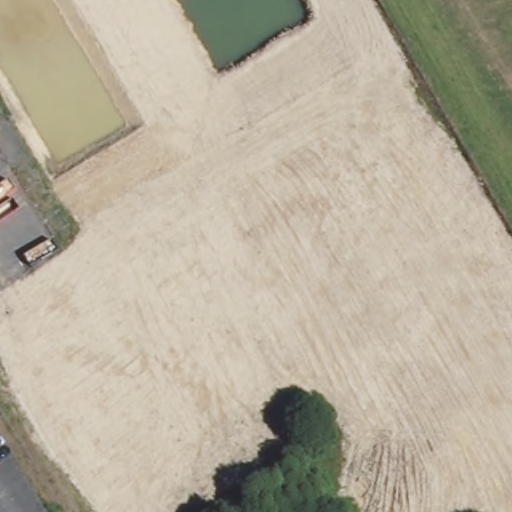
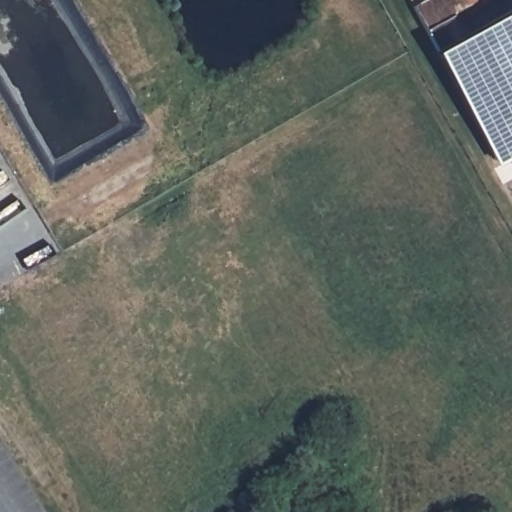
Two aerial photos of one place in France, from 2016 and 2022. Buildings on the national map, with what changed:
new [(436,54),(512,10),(512,157),(498,165),(436,54)]

